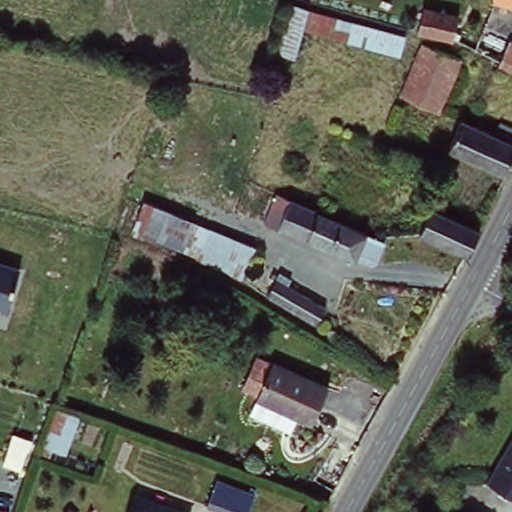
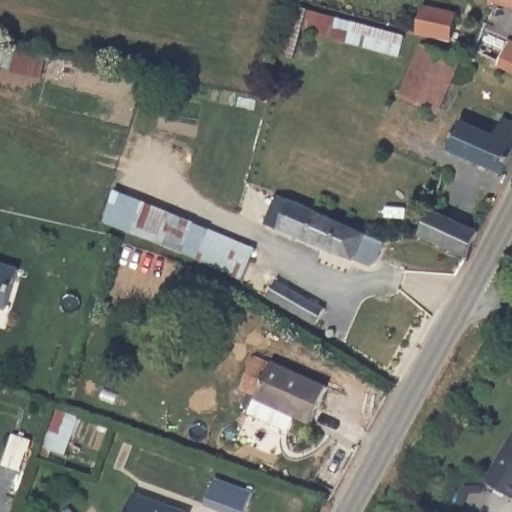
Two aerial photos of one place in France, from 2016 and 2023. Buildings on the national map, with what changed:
unchanged [(281,16),(286,0),(300,0),(349,13),(343,33),(298,22),(291,46),(275,40),(281,16)]
unchanged [(420,2),(453,12),(446,33),(413,25),(420,2)]
unchanged [(498,62),(488,55),(497,37),(512,44),(512,72),(496,64),(498,62)]
unchanged [(417,41),(457,61),(435,107),(396,87),(417,41)]
unchanged [(463,112),(512,134),(512,153),(505,166),(449,140),(463,112)]
unchanged [(381,237),(370,266),(261,217),(272,188),(381,237)]
unchanged [(260,245),(250,277),(137,228),(151,199),(260,245)]
unchanged [(420,230),(430,205),(478,227),(466,252),(420,230)]
unchanged [(20,268),(8,308),(0,306),(0,262),(20,268)]
unchanged [(273,270),(285,276),(281,283),(320,306),(311,321),(260,293),(273,270)]
unchanged [(275,353),(328,381),(311,416),(257,390),(275,353)]
unchanged [(59,411),(80,417),(66,454),(46,448),(59,411)]
unchanged [(512,498),(485,481),(512,440),(512,498)]
unchanged [(264,485),(253,511),(216,495),(227,469),(264,485)]
unchanged [(135,492),(184,512),(128,512),(135,492)]

